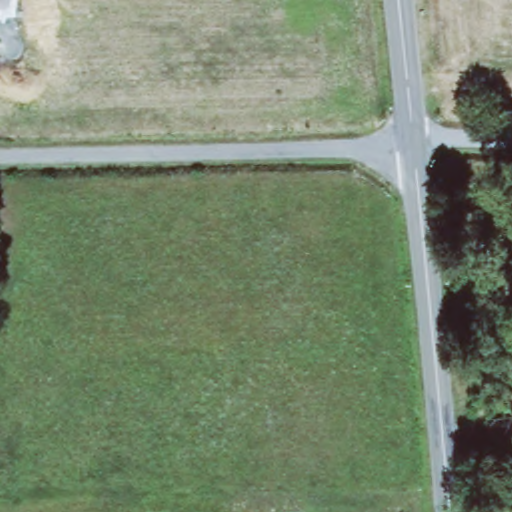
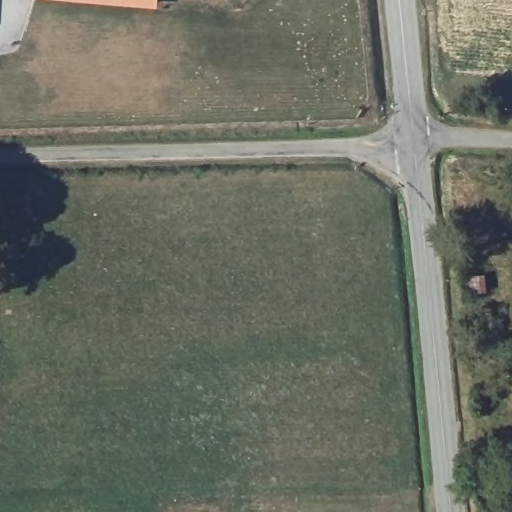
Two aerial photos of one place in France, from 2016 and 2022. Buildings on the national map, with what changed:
new [(157,7),(66,0),(157,0),(157,7)]

